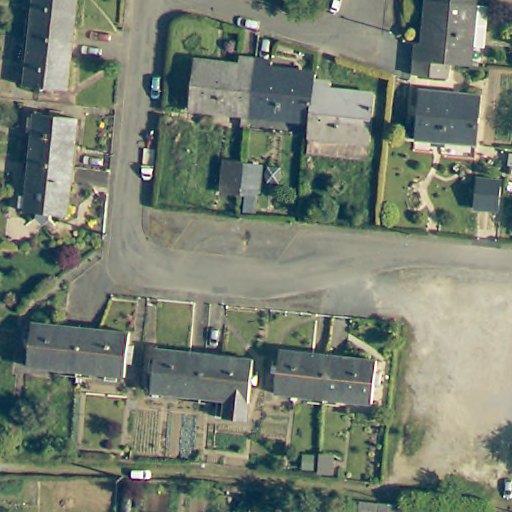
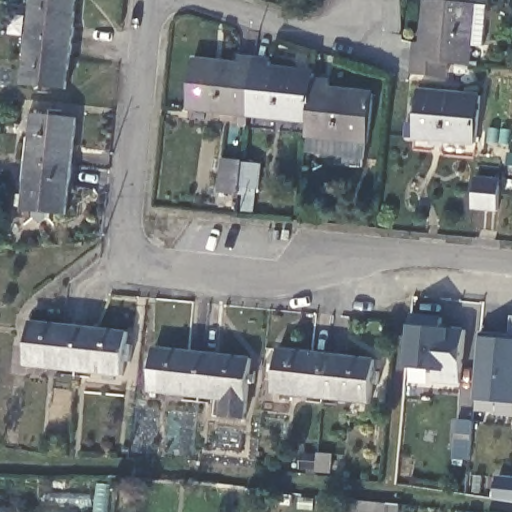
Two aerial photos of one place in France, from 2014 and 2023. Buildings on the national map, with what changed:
unchanged [(35,0),(78,0),(74,41),(30,36),(35,0)]
unchanged [(416,45),(423,45),(429,1),(425,1),(425,0),(488,0),(488,6),(475,6),(469,66),(447,64),(446,79),(413,76),(415,60),(416,45)]
unchanged [(493,8),(489,7),(484,66),(469,66),(475,6),(488,6),(488,0),(493,0),(493,8)]
unchanged [(69,90),(24,84),(30,36),(74,41),(69,90)]
unchanged [(245,132),(246,120),(193,114),(198,67),(242,72),(242,65),(259,66),(254,121),(253,132),(245,132)]
unchanged [(259,66),(275,68),(274,75),(318,80),(318,87),(314,127),(254,121),(259,66)]
unchanged [(314,127),(318,87),(334,89),(334,96),(378,101),(372,148),(313,142),(314,127)]
unchanged [(419,92),(481,97),(476,145),(415,140),(419,92)]
unchanged [(36,114),(79,118),(74,166),(31,162),(36,114)]
unchanged [(224,160),(244,161),(261,162),(259,187),(242,186),(242,192),(221,190),(224,160)]
unchanged [(69,215),(25,210),(31,162),(74,166),(69,215)]
new [(477,180),(502,182),(499,212),(474,210),(477,180)]
new [(445,316),(444,326),(467,328),(462,385),(436,383),(437,371),(407,368),(412,325),(413,313),(445,316)]
unchanged [(28,367),(33,324),(79,329),(74,372),(28,367)]
unchanged [(79,329),(129,334),(124,377),(74,372),(79,329)]
new [(476,400),(483,332),(512,334),(512,403),(476,400)]
unchanged [(153,394),(157,352),(206,358),(201,400),(153,394)]
unchanged [(280,352),(331,358),(327,401),(275,395),(280,352)]
unchanged [(254,363),(249,405),(247,422),(224,420),(226,402),(201,400),(206,358),(254,363)]
unchanged [(331,358),(377,363),(372,405),(327,401),(331,358)]
unchanged [(321,456),(333,457),(331,477),(319,476),(321,456)]
unchanged [(401,508),(401,512),(358,512),(359,503),(401,508)]

